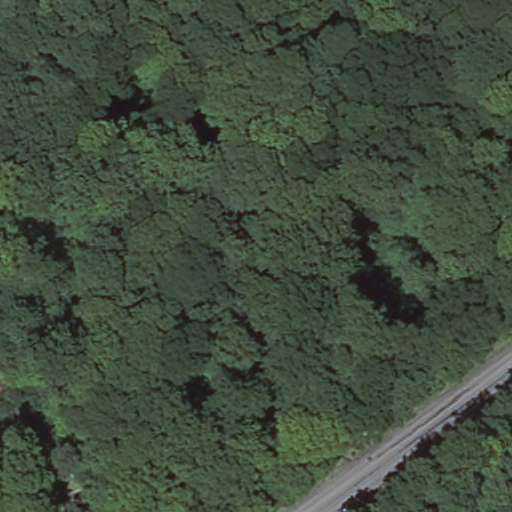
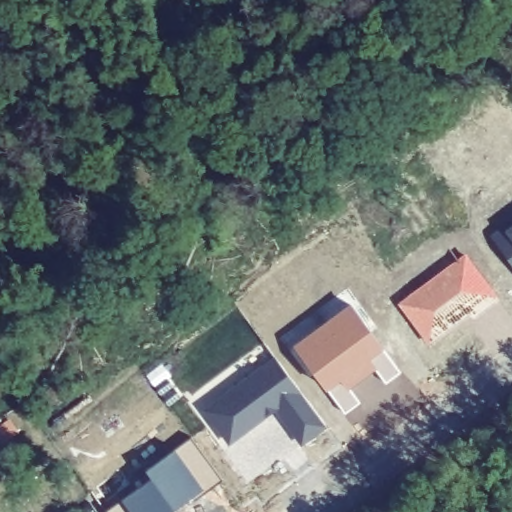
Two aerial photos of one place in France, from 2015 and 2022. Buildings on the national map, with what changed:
new [(502,227),(506,232),(512,227),(512,268),(488,238),(502,227)]
new [(466,256),(496,296),(427,346),(397,305),(466,256)]
new [(352,307),(401,373),(386,385),(374,368),(348,387),(360,404),(345,415),(296,349),(352,307)]
new [(276,359),(325,426),(302,444),(276,410),(229,444),(206,412),(276,359)]
new [(221,482),(172,512),(106,512),(151,480),(145,473),(190,439),(221,482)]
unchanged [(0,453),(0,443),(5,450),(0,453)]

